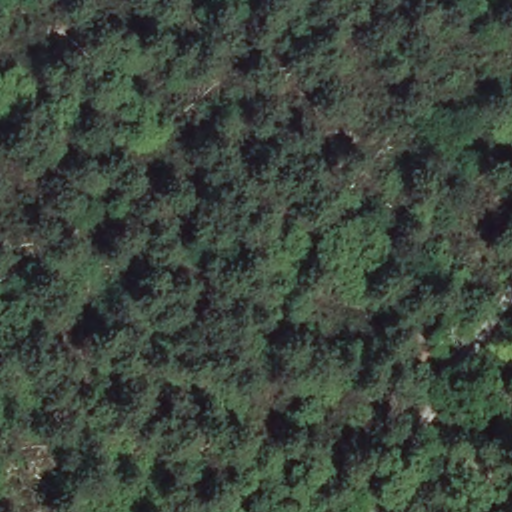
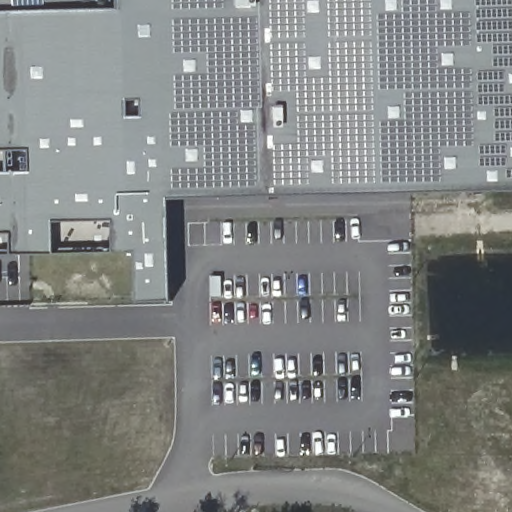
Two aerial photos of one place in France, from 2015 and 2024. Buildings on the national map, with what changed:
new [(0,255),(0,0),(512,0),(512,190),(168,199),(171,301),(137,302),(135,251),(0,255)]

